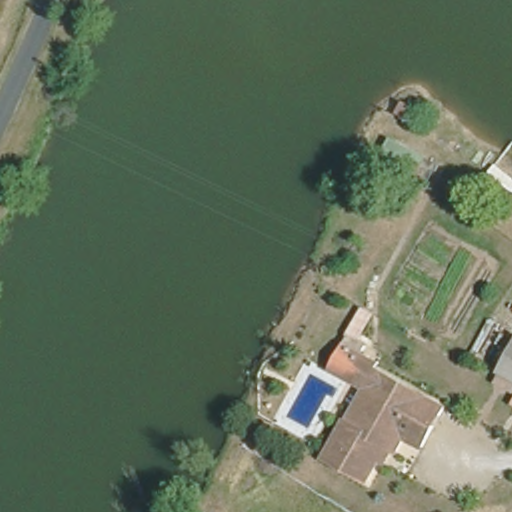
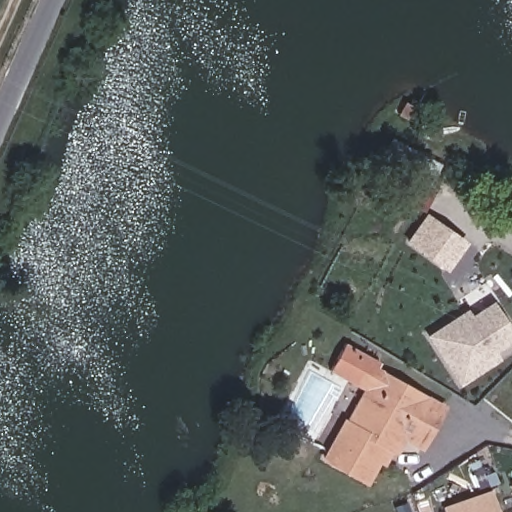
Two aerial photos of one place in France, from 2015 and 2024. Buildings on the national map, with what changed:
unchanged [(418,109),(413,119),(401,113),(406,103),(418,109)]
unchanged [(418,155),(405,178),(385,167),(377,164),(392,140),(401,145),(418,155)]
new [(426,212),(468,243),(447,272),(405,242),(426,212)]
new [(497,353),(501,360),(460,387),(426,336),(468,309),(472,315),(493,301),(512,329),(512,343),(497,353)]
new [(345,343),(377,361),(361,389),(330,370),(345,343)]
demolished [(504,370),(512,355),(512,374),(504,370)]
unchanged [(381,454),(367,476),(326,452),(347,414),(377,361),(392,370),(446,400),(423,441),(406,432),(398,445),(393,443),(387,456),(381,454)]
new [(512,484),(512,490),(510,484),(512,484)]
new [(499,512),(443,512),(442,506),(491,489),(499,512)]

